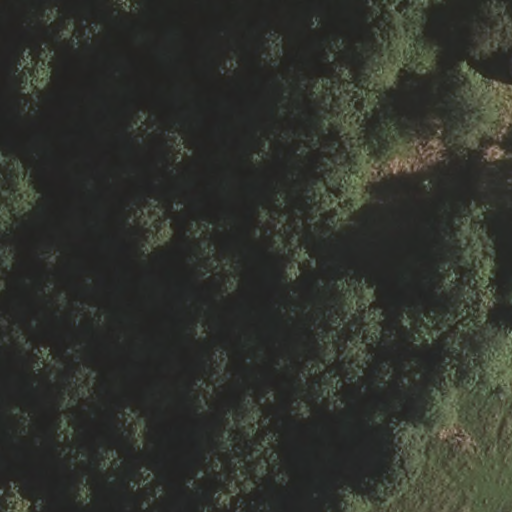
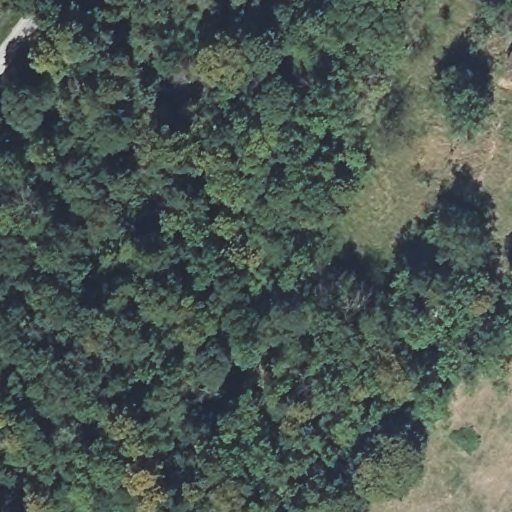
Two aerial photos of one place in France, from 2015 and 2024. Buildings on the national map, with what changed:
unchanged [(505,66),(502,54),(509,42),(512,40),(512,73),(505,66)]

